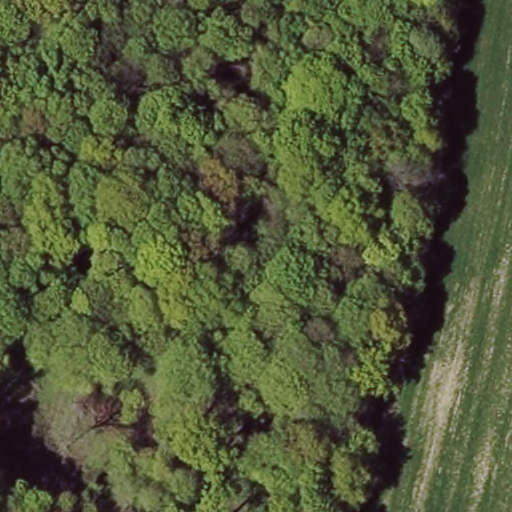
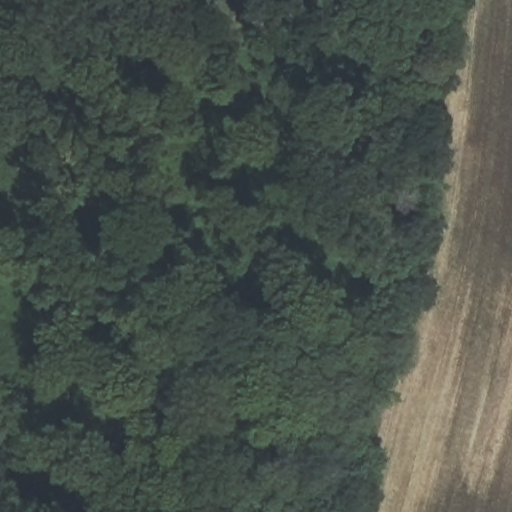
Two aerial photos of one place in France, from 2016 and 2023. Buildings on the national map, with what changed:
[]

